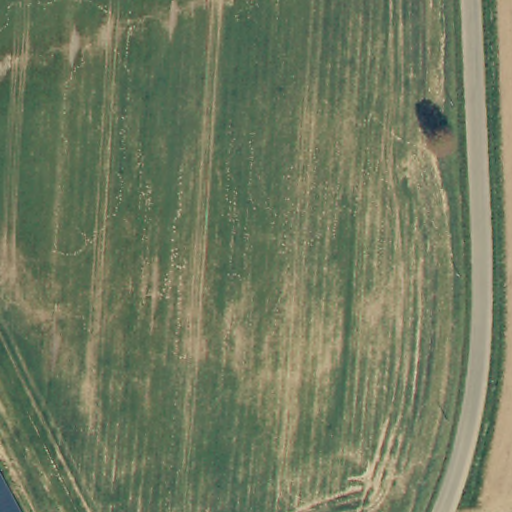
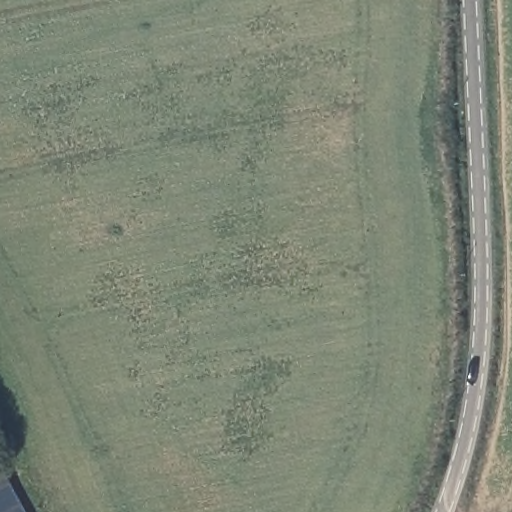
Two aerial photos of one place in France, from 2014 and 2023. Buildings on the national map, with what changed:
unchanged [(25,512),(0,512),(0,474),(4,472),(25,512)]

